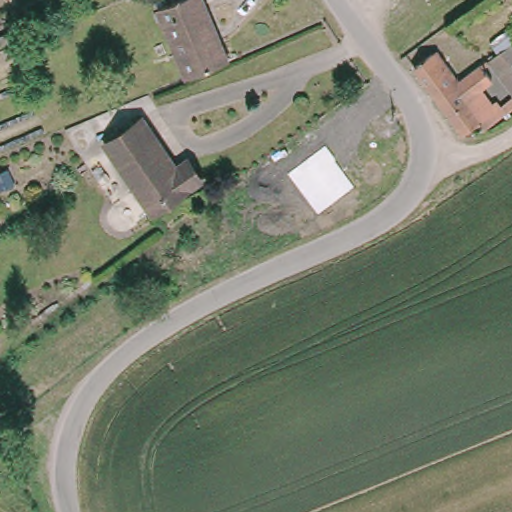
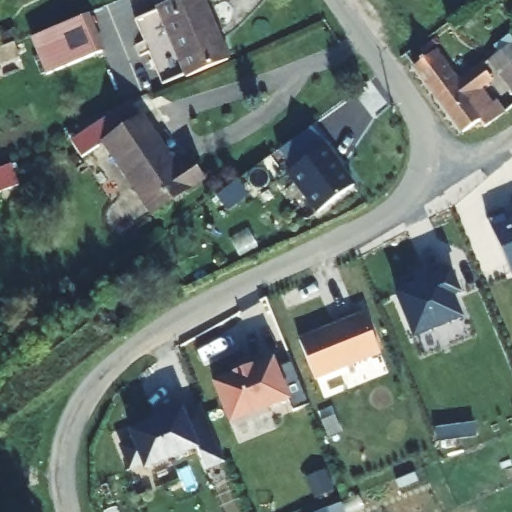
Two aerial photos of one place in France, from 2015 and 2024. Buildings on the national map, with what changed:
unchanged [(162,15),(160,11),(193,0),(205,0),(227,65),(184,81),(162,15)]
new [(105,50),(97,54),(47,74),(32,38),(81,17),(91,13),(105,50)]
new [(0,65),(0,49),(15,42),(21,57),(0,65)]
unchanged [(487,62),(512,46),(512,99),(487,62)]
unchanged [(478,68),(490,85),(467,102),(475,113),(491,102),(489,117),(501,109),(512,125),(490,141),(480,127),(462,139),(430,91),(417,71),(419,69),(433,61),(442,55),(455,73),(460,81),(478,68)]
unchanged [(105,147),(142,120),(178,168),(191,159),(213,184),(159,222),(105,147)]
unchanged [(327,141),(337,156),(335,157),(354,183),(317,209),(288,168),(327,141)]
new [(488,219),(506,212),(510,221),(512,220),(512,272),(511,272),(488,219)]
new [(429,281),(427,276),(449,267),(459,293),(453,296),(461,318),(415,336),(397,293),(429,281)]
new [(364,312),(380,352),(315,378),(299,338),(364,312)]
new [(288,399),(230,422),(214,383),(234,375),(233,372),(252,365),(253,367),(272,359),(288,399)]
new [(225,461),(207,467),(200,448),(145,467),(144,463),(132,467),(126,445),(139,441),(135,431),(202,407),(225,461)]

